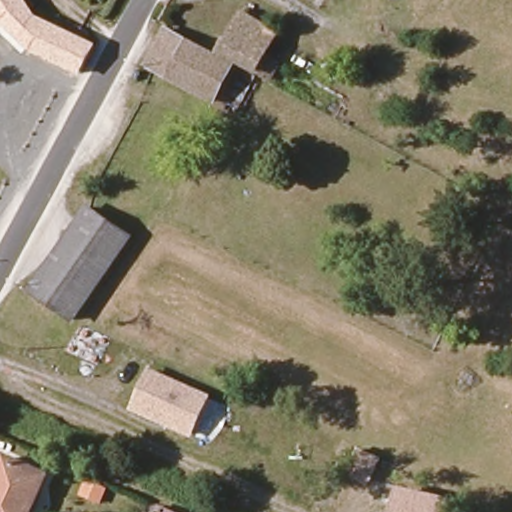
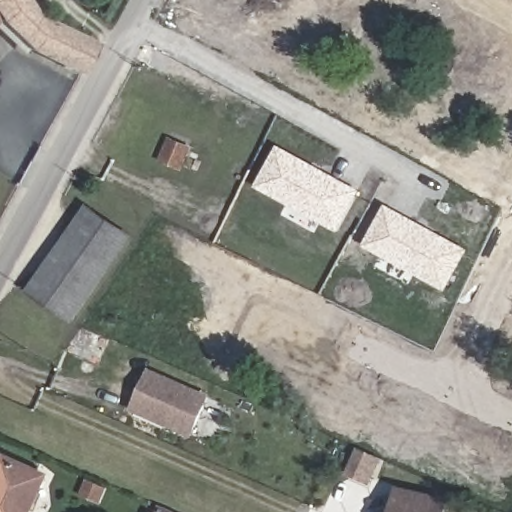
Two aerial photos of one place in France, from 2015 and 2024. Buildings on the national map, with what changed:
unchanged [(12,31),(0,19),(0,0),(18,0),(29,15),(39,25),(96,50),(83,75),(43,56),(29,46),(12,31)]
unchanged [(218,56),(242,13),(279,34),(256,74),(238,66),(213,110),(145,68),(163,30),(218,56)]
unchanged [(171,164),(153,154),(162,137),(180,146),(171,164)]
new [(362,191),(339,233),(254,187),(278,145),(362,191)]
new [(469,250),(446,291),(363,247),(386,205),(469,250)]
unchanged [(85,211),(125,240),(68,320),(30,293),(85,211)]
unchanged [(151,369),(214,396),(195,440),(131,411),(151,369)]
unchanged [(381,457),(369,486),(344,476),(358,446),(381,457)]
unchanged [(0,477),(7,463),(46,483),(32,512),(0,512),(0,477)]
unchanged [(449,502),(447,512),(393,512),(397,491),(449,502)]

